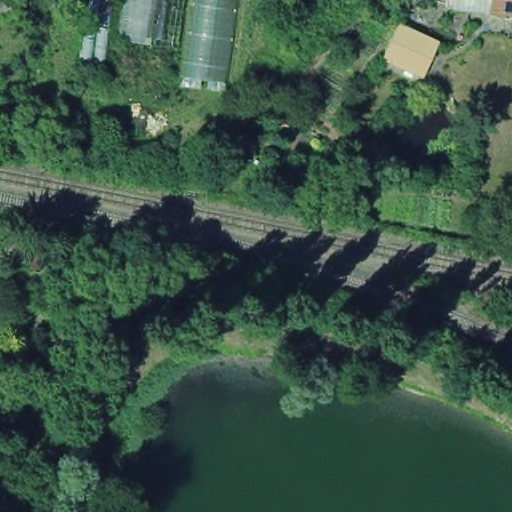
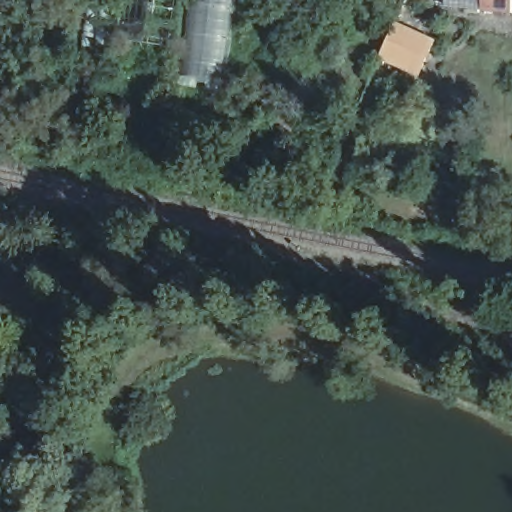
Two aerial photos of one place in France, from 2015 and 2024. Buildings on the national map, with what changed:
unchanged [(119,45),(126,0),(190,0),(183,54),(119,45)]
unchanged [(190,0),(229,0),(218,82),(178,78),(183,54),(190,0)]
unchanged [(448,0),(512,0),(512,21),(447,15),(448,0)]
unchanged [(428,47),(414,77),(376,60),(379,55),(389,30),(428,47)]
unchanged [(296,125),(289,135),(274,124),(282,114),(296,125)]

